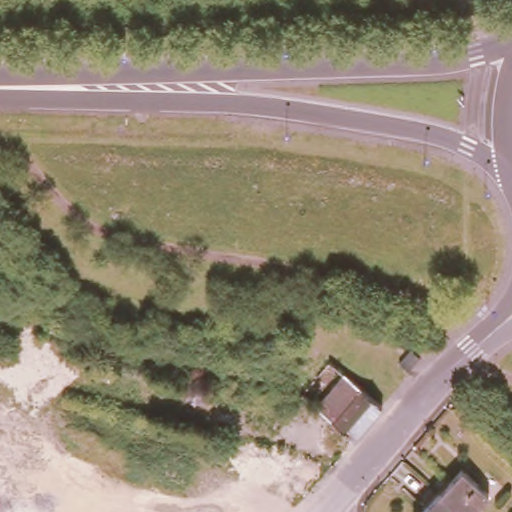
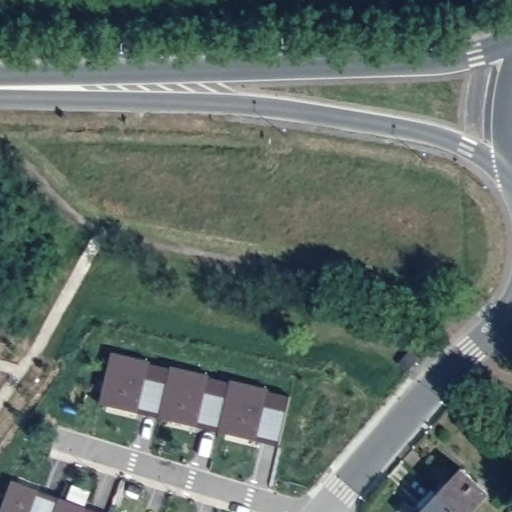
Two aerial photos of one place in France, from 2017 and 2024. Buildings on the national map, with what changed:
new [(100,403),(113,351),(150,360),(139,412),(100,403)]
new [(139,412),(150,362),(172,367),(160,417),(139,412)]
new [(160,417),(172,366),(210,374),(197,426),(160,417)]
new [(197,426),(209,376),(230,381),(219,431),(197,426)]
new [(219,431),(231,379),(269,388),(257,440),(219,431)]
demolished [(311,412),(340,379),(342,381),(377,410),(349,443),(315,415),(311,412)]
new [(268,391),(290,396),(279,445),(257,440),(268,391)]
demolished [(349,443),(325,470),(295,462),(314,441),(302,430),(315,415),(349,443)]
unchanged [(487,487),(464,512),(461,512),(437,488),(460,462),(487,487)]
new [(40,489),(31,512),(1,512),(13,479),(40,489)]
unchanged [(461,512),(415,512),(437,488),(461,512)]
new [(55,512),(31,512),(40,489),(61,497),(55,512)]
new [(87,506),(85,512),(55,512),(61,497),(87,506)]
new [(85,512),(87,506),(101,512),(85,512)]

